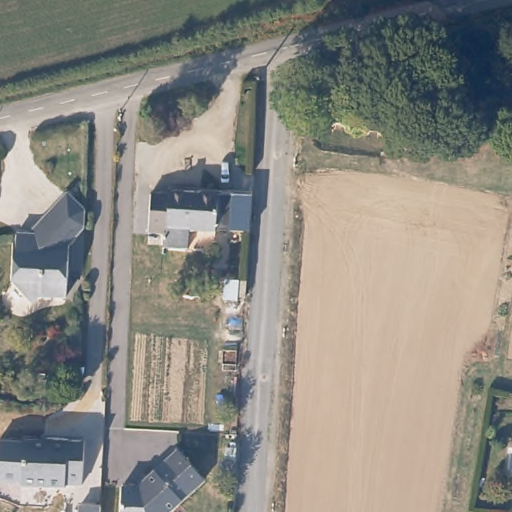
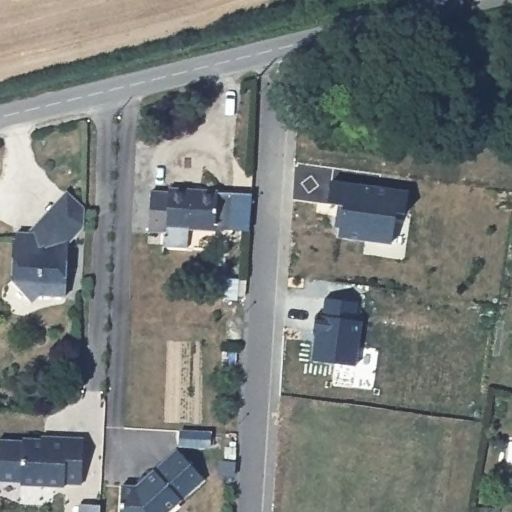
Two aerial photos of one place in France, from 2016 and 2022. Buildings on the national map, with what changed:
new [(407,214),(397,212),(392,244),(339,236),(340,226),(334,225),(338,205),(328,203),(331,180),(408,190),(407,214)]
unchanged [(146,230),(147,189),(170,190),(170,186),(218,191),(232,192),(230,221),(215,220),(215,225),(186,224),(185,245),(160,244),(161,230),(146,230)]
unchanged [(73,236),(71,290),(41,290),(33,298),(20,281),(11,280),(15,231),(27,231),(53,206),(71,188),(88,207),(87,225),(73,236)]
new [(358,366),(311,361),(317,315),(322,315),(324,299),(358,303),(356,320),(364,320),(358,366)]
unchanged [(89,437),(86,482),(69,481),(69,485),(26,482),(28,437),(53,438),(53,435),(89,437)]
unchanged [(143,477),(187,440),(215,470),(162,512),(124,512),(126,476),(143,477)]
unchanged [(242,454),(241,468),(231,467),(232,453),(242,454)]
unchanged [(100,512),(79,512),(80,506),(100,507),(100,512)]

